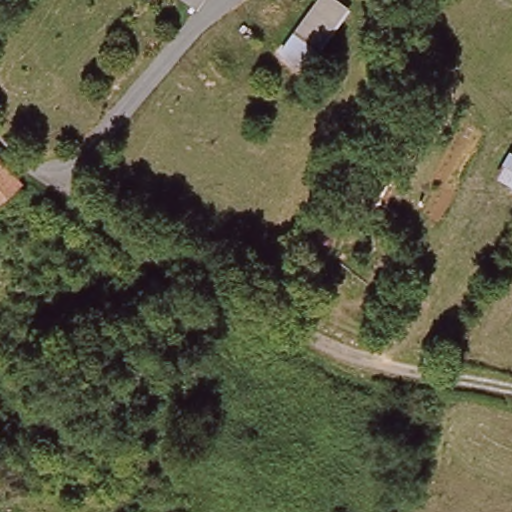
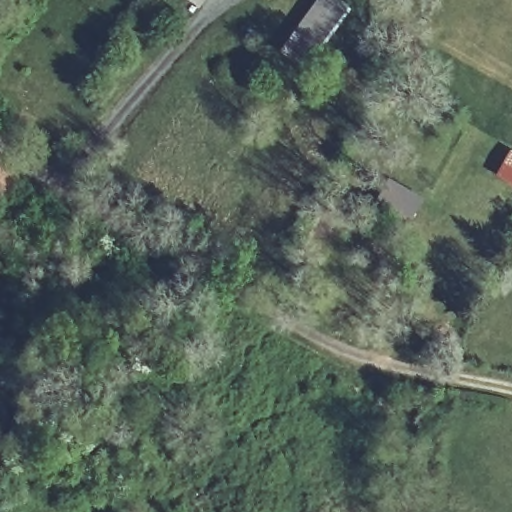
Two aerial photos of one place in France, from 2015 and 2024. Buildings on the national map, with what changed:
unchanged [(206,0),(200,8),(189,0),(206,0)]
unchanged [(301,65),(286,55),(326,0),(336,0),(342,4),(351,11),(309,71),(301,65)]
unchanged [(510,150),(512,151),(512,184),(498,176),(510,150)]
unchanged [(0,207),(0,160),(34,182),(0,207)]

